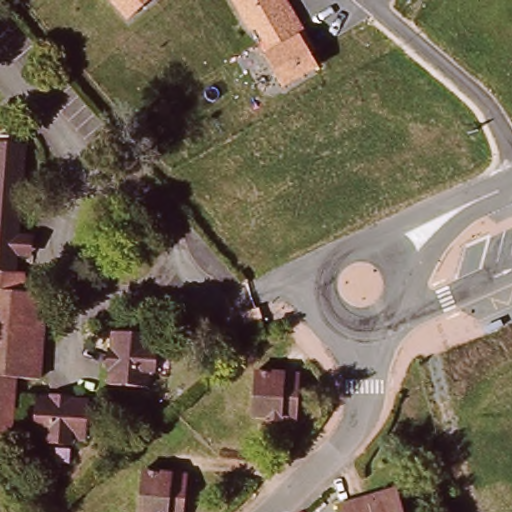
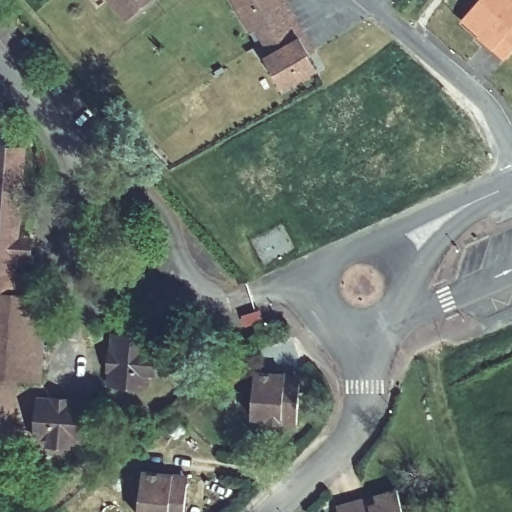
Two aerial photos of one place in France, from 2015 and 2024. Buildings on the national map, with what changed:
unchanged [(109,0),(151,0),(126,21),(109,0)]
unchanged [(256,32),(248,35),(230,0),(288,0),(316,54),(311,57),(319,71),(281,92),(263,55),(268,53),(256,32)]
new [(492,50),(459,22),(478,0),(512,0),(512,49),(503,60),(492,50)]
unchanged [(11,131),(10,147),(23,148),(18,233),(36,235),(34,265),(7,263),(6,275),(25,277),(23,295),(46,297),(40,383),(18,381),(13,442),(0,441),(0,131),(11,131)]
unchanged [(154,352),(153,373),(146,372),(143,392),(105,388),(111,332),(148,336),(147,351),(154,352)]
unchanged [(264,422),(247,420),(252,378),(294,381),(291,430),(278,429),(264,428),(264,422)]
unchanged [(86,403),(83,442),(70,441),(70,450),(43,447),(44,440),(29,438),(32,399),(86,403)]
unchanged [(138,478),(168,480),(183,480),(182,489),(181,512),(135,512),(138,478)]
unchanged [(351,506),(392,493),(398,512),(353,512),(351,506)]
unchanged [(336,511),(351,506),(353,512),(336,512),(336,511)]

